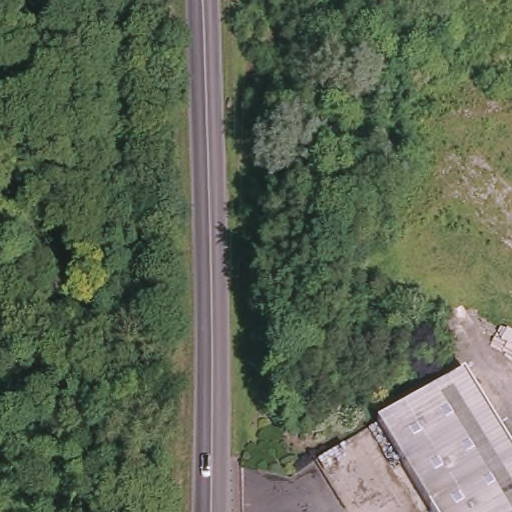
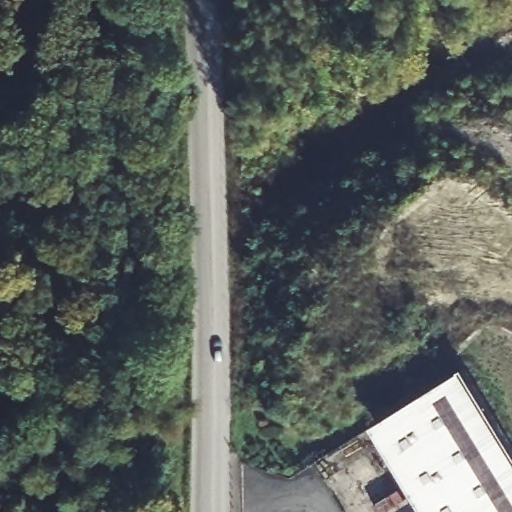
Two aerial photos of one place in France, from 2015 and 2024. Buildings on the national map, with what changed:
unchanged [(379,425),(464,370),(512,443),(512,512),(428,512),(379,425)]

